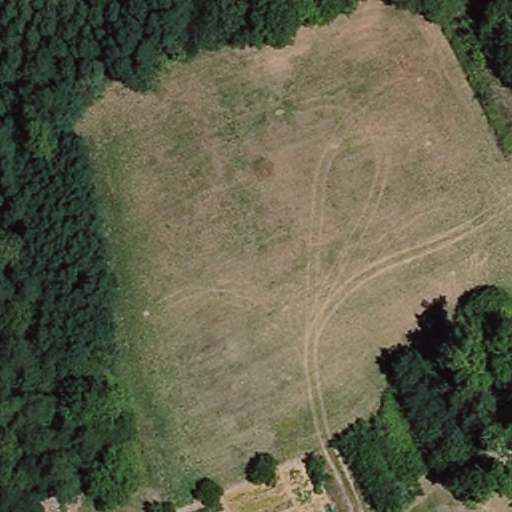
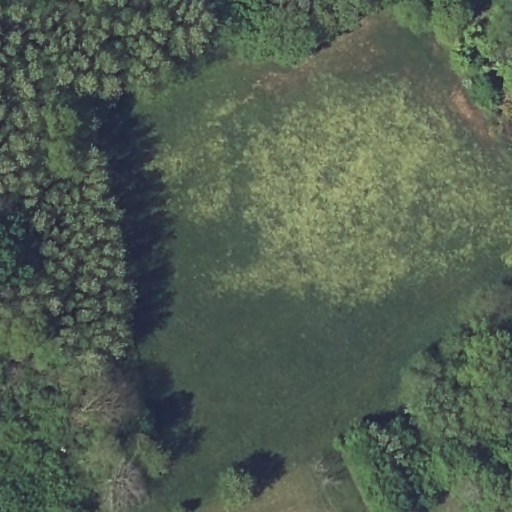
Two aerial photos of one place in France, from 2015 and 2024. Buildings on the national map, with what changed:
[]

